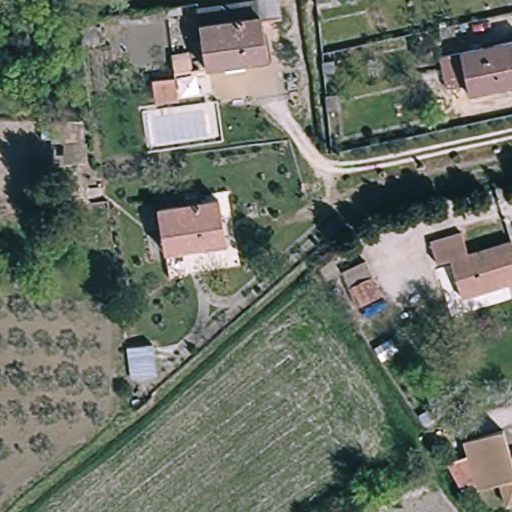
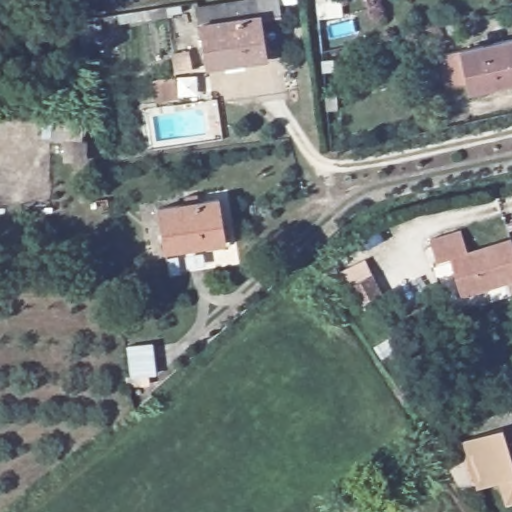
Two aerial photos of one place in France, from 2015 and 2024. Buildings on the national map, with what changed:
unchanged [(206,59),(200,14),(258,6),(263,43),(264,49),(245,52),(206,59)]
unchanged [(463,38),(448,41),(446,31),(461,27),(463,38)]
unchanged [(464,83),(446,88),(436,56),(512,38),(512,81),(467,93),(464,83)]
unchanged [(164,252),(157,207),(222,198),(226,236),(227,243),(201,246),(164,252)]
unchanged [(469,253),(504,236),(512,251),(512,277),(470,300),(451,265),(444,269),(430,243),(454,232),(469,253)]
unchanged [(339,273),(361,265),(381,302),(351,312),(339,273)]
unchanged [(474,489),(461,440),(498,429),(509,460),(512,459),(512,501),(500,504),(494,484),(474,489)]

